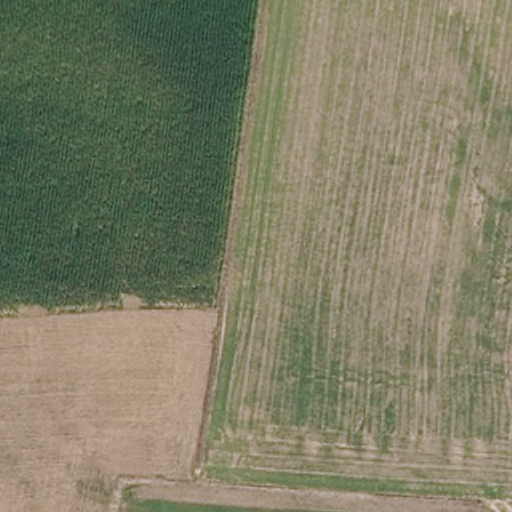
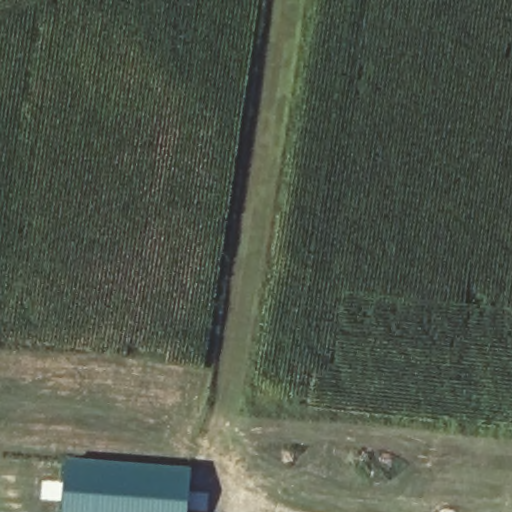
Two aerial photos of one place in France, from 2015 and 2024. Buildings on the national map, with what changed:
new [(188,512),(62,512),(65,458),(191,466),(188,512)]

